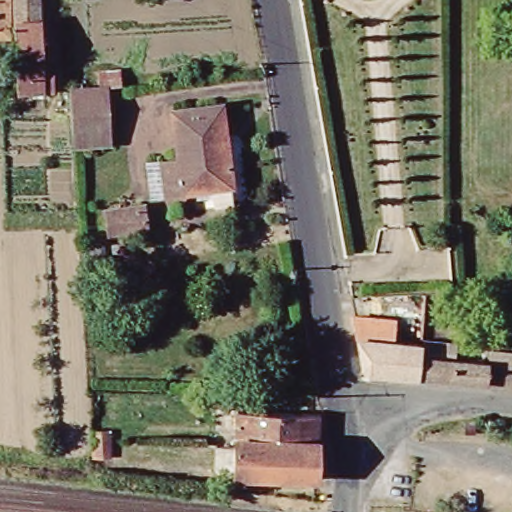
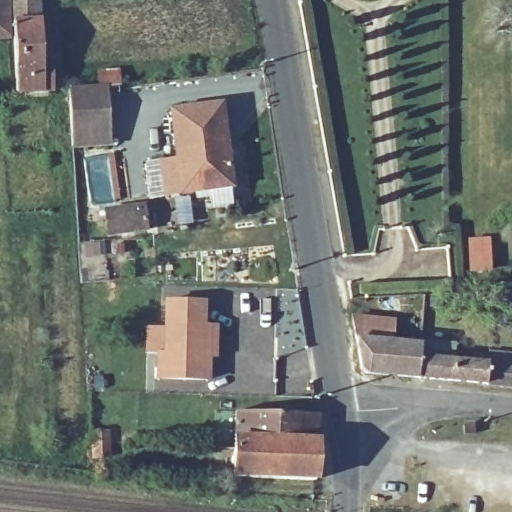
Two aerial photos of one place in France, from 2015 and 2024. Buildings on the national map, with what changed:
unchanged [(5,33),(0,33),(0,0),(4,0),(5,33)]
unchanged [(9,0),(37,0),(39,62),(49,62),(49,69),(50,91),(14,92),(14,83),(13,71),(9,0)]
unchanged [(68,93),(103,91),(105,123),(107,147),(71,149),(68,93)]
unchanged [(168,114),(217,108),(227,189),(225,189),(227,208),(209,210),(207,192),(148,199),(144,167),(174,163),(168,114)]
unchanged [(146,208),(148,233),(109,235),(108,211),(146,208)]
new [(205,324),(217,325),(216,358),(210,357),(210,382),(156,380),(156,352),(163,353),(164,300),(204,301),(205,324)]
unchanged [(367,375),(359,372),(355,363),(347,319),(389,320),(387,342),(416,345),(413,379),(367,375)]
unchanged [(413,379),(416,345),(418,327),(451,331),(469,332),(484,334),(499,336),(497,354),(512,355),(512,388),(413,379)]
unchanged [(315,414),(314,479),(230,475),(233,432),(215,431),(215,413),(315,414)]

